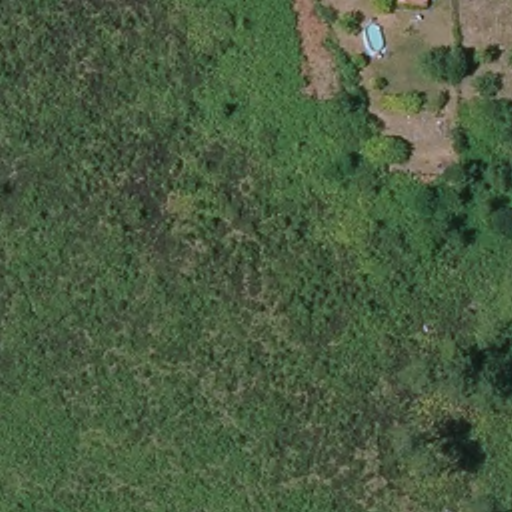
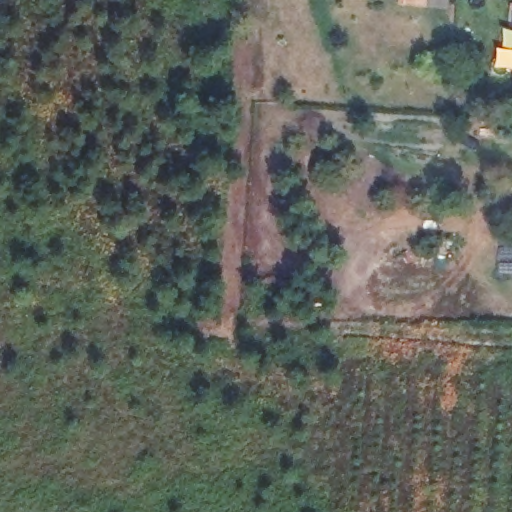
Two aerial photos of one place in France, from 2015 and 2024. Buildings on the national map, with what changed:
unchanged [(393,11),(394,0),(431,0),(430,14),(393,11)]

